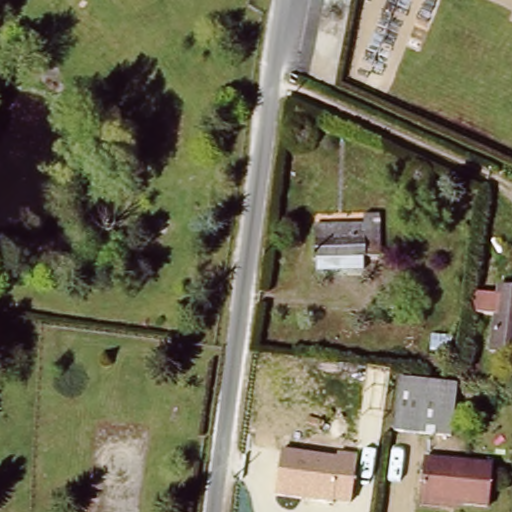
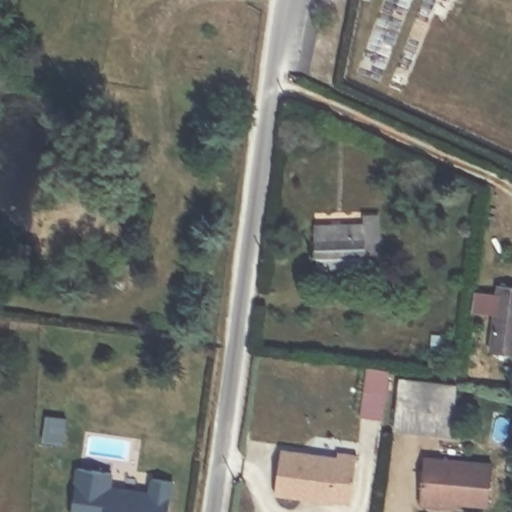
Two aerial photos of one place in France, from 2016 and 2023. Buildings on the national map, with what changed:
unchanged [(360,225),(362,256),(313,261),(310,229),(360,225)]
unchanged [(512,352),(491,350),(500,284),(512,286),(512,352)]
unchanged [(451,437),(395,430),(401,376),(458,383),(451,437)]
unchanged [(281,450),(336,457),(337,452),(357,455),(350,502),(335,501),(335,502),(275,497),(281,450)]
unchanged [(494,464),(489,505),(452,501),(450,508),(417,502),(426,456),(494,464)]
new [(73,512),(77,468),(116,474),(115,486),(150,492),(151,477),(175,482),(172,512),(73,512)]

